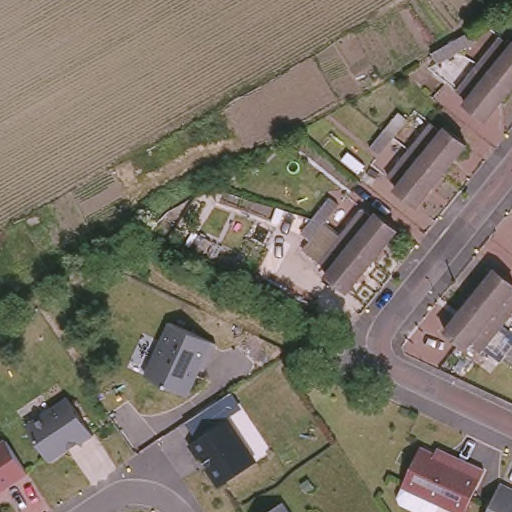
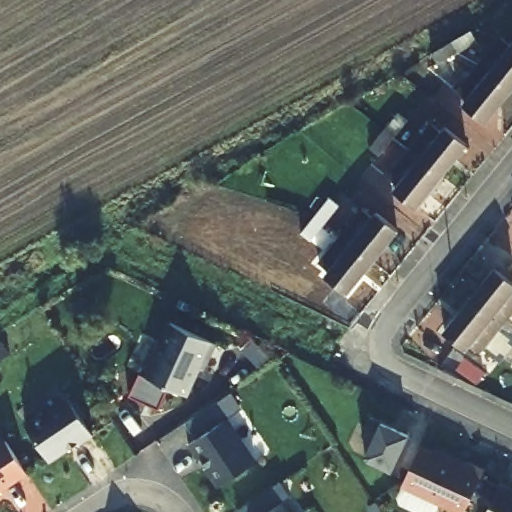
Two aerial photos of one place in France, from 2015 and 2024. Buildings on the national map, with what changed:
unchanged [(487,46),(467,58),(447,70),(442,59),(457,50),(482,36),(487,46)]
unchanged [(500,40),(512,49),(512,48),(512,92),(511,94),(487,74),(478,66),(500,40)]
unchanged [(487,123),(466,106),(470,101),(459,91),(478,66),(487,74),(511,94),(487,123)]
unchanged [(371,151),(385,133),(400,114),(409,121),(394,140),(380,158),(371,151)]
unchanged [(432,124),(444,134),(448,129),(469,146),(443,179),(410,153),(432,124)]
unchanged [(419,209),(397,191),(402,186),(391,176),(410,153),(443,179),(419,209)]
unchanged [(301,237),(317,218),(331,200),(341,208),(326,225),(310,244),(301,237)]
unchanged [(363,211),(374,220),(378,215),(400,232),(375,264),(342,238),(363,211)]
unchanged [(351,295),(329,277),(332,273),(321,264),(342,238),(375,264),(351,295)]
demolished [(263,257),(272,247),(292,264),(285,274),(263,257)]
unchanged [(498,272),(512,282),(512,319),(505,329),(472,303),(498,272)]
unchanged [(483,356),(472,347),(469,351),(447,334),(472,303),(505,329),(483,356)]
unchanged [(169,323),(215,344),(202,370),(199,369),(186,396),(144,377),(169,323)]
unchanged [(506,360),(512,352),(512,365),(506,360)]
unchanged [(67,397),(92,437),(77,447),(75,444),(47,463),(22,427),(67,397)]
new [(365,457),(372,440),(362,435),(370,418),(408,436),(391,473),(367,461),(365,457)]
unchanged [(226,420),(255,463),(220,487),(201,458),(197,460),(187,445),(226,420)]
unchanged [(26,473),(0,490),(0,445),(5,442),(26,473)]
unchanged [(420,448),(466,470),(469,464),(484,471),(465,512),(453,512),(401,488),(420,448)]
unchanged [(512,490),(512,494),(512,512),(486,512),(492,501),(499,484),(512,490)]
unchanged [(282,504),(287,512),(268,512),(282,504)]

